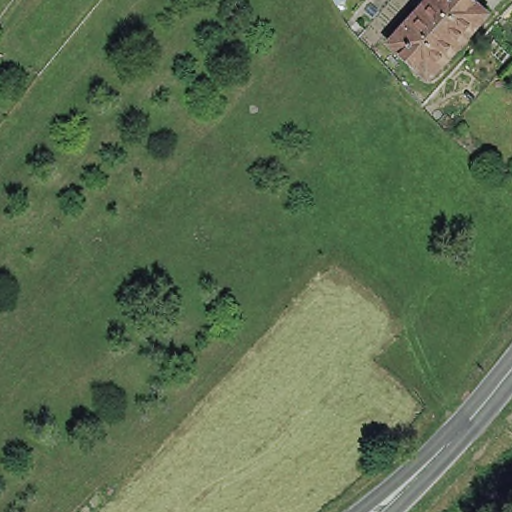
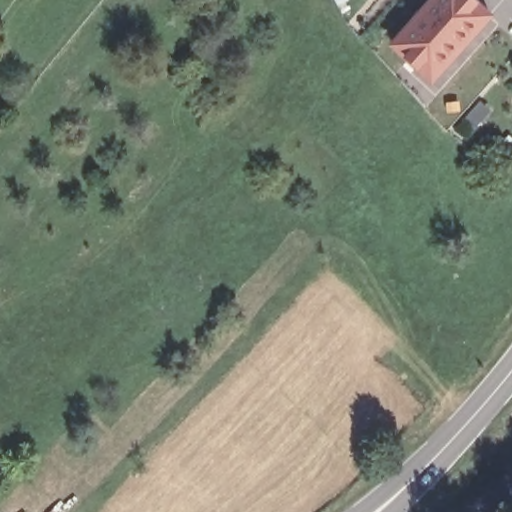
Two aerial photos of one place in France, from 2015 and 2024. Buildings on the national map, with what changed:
unchanged [(434,0),(459,0),(462,0),(472,9),(471,11),(483,22),(427,84),(414,73),(412,73),(401,64),(402,61),(390,50),(434,0)]

